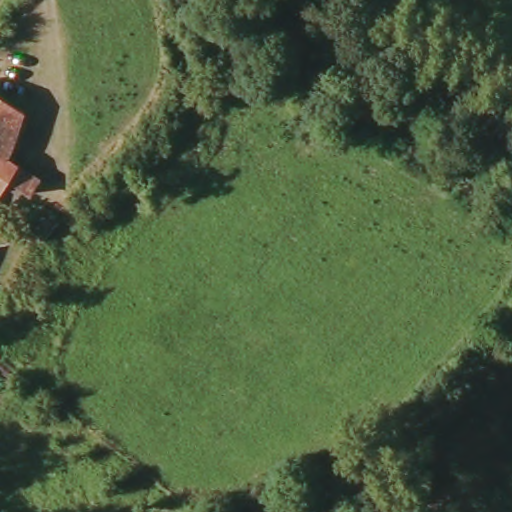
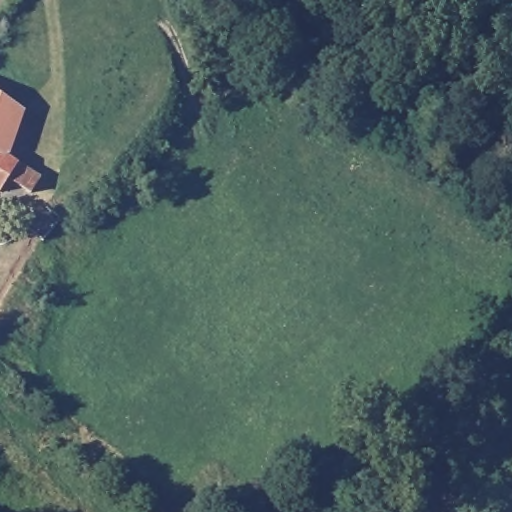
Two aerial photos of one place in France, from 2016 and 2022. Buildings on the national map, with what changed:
unchanged [(0,144),(0,100),(13,108),(0,144)]
unchanged [(23,195),(0,178),(0,154),(31,176),(23,195)]

